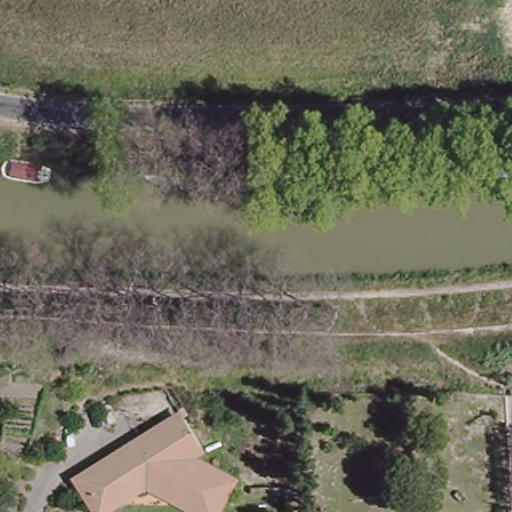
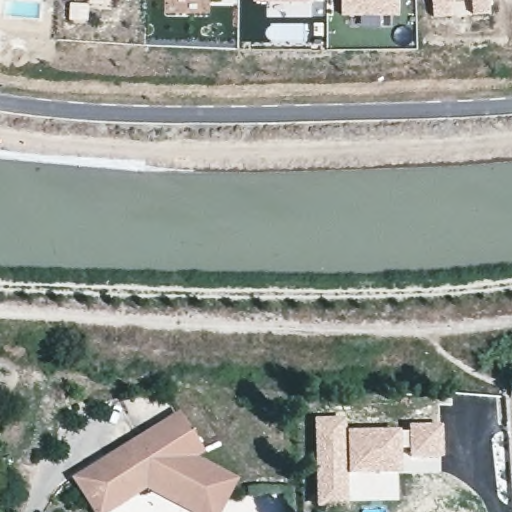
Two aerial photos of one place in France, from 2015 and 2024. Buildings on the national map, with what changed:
new [(210,0),(210,16),(163,16),(163,0),(210,0)]
new [(265,4),(253,3),(253,0),(312,0),(312,4),(265,4)]
new [(400,0),(400,16),(343,16),(343,0),(400,0)]
new [(472,15),(471,2),(454,3),(455,15),(432,17),(431,0),(490,0),(491,14),(472,15)]
unchanged [(159,491),(119,512),(103,512),(75,472),(182,405),(200,453),(242,475),(224,512),(201,512),(159,491)]
new [(345,416),(345,430),(347,502),(347,506),(314,508),(312,416),(345,416)]
new [(402,451),(407,451),(407,430),(407,423),(441,423),(441,472),(402,473),(402,451)]
new [(407,430),(407,451),(402,451),(402,473),(399,473),(399,500),(347,502),(345,430),(407,430)]

